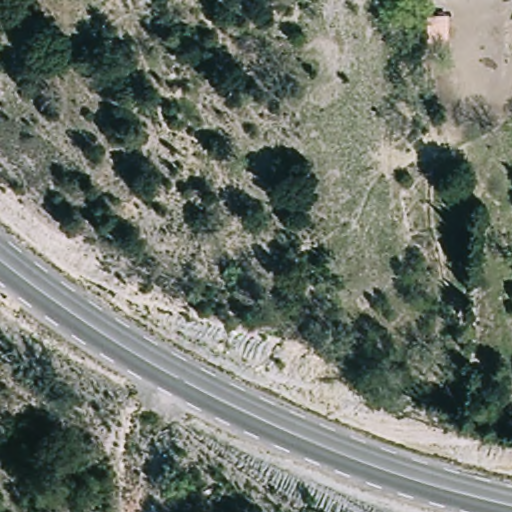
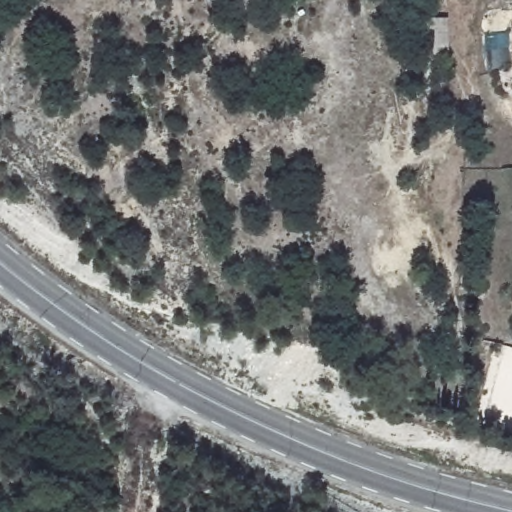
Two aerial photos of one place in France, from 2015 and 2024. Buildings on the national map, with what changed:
unchanged [(511,29),(512,28),(512,41),(511,29)]

